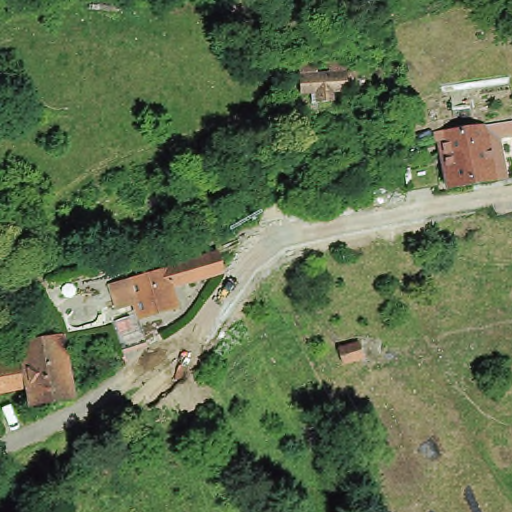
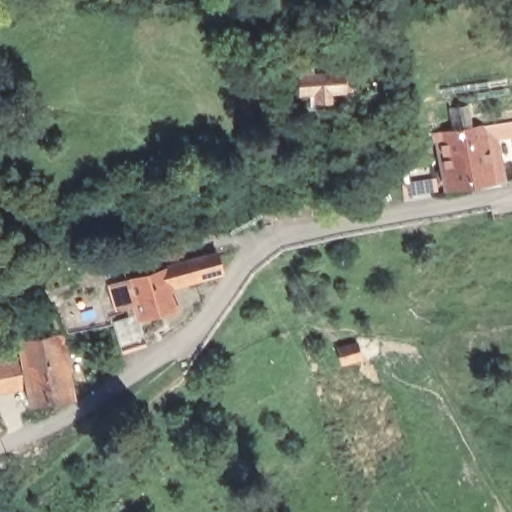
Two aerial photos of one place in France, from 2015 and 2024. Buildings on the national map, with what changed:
unchanged [(335,75),(347,74),(348,81),(349,99),(335,99),(335,110),(320,111),(320,100),(306,101),(305,84),(305,72),(317,71),(318,83),(335,82),(335,75)]
unchanged [(440,159),(437,146),(480,140),(480,143),(492,141),(498,194),(490,196),(487,187),(467,190),(468,193),(460,194),(460,191),(443,193),(440,159)]
unchanged [(402,175),(398,155),(405,154),(431,150),(435,182),(417,185),(403,188),(402,175)]
unchanged [(226,276),(177,292),(172,275),(172,272),(225,257),(231,275),(226,276)]
unchanged [(118,325),(136,319),(133,311),(123,314),(116,290),(135,286),(172,275),(177,292),(183,312),(145,323),(147,330),(152,346),(147,347),(127,353),(120,334),(118,325)]
unchanged [(25,361),(22,347),(63,339),(73,403),(32,411),(30,391),(0,397),(0,366),(25,361)]

